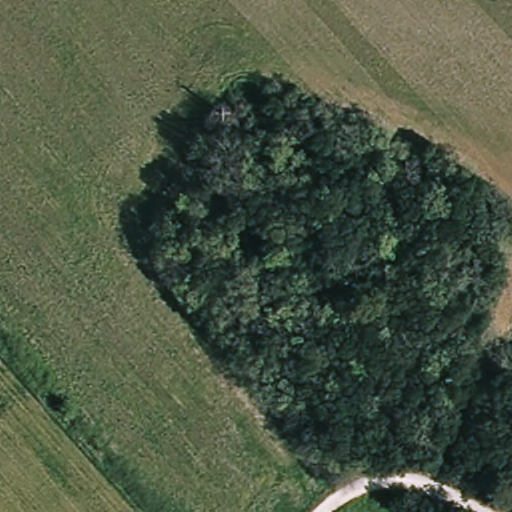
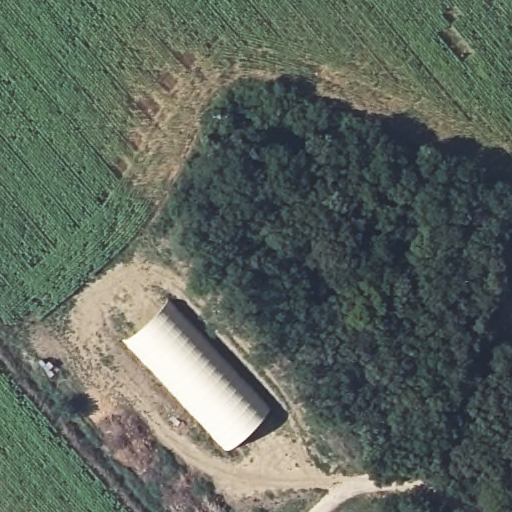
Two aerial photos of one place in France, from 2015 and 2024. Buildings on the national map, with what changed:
new [(227,450),(123,338),(168,296),(272,408),(227,450)]

